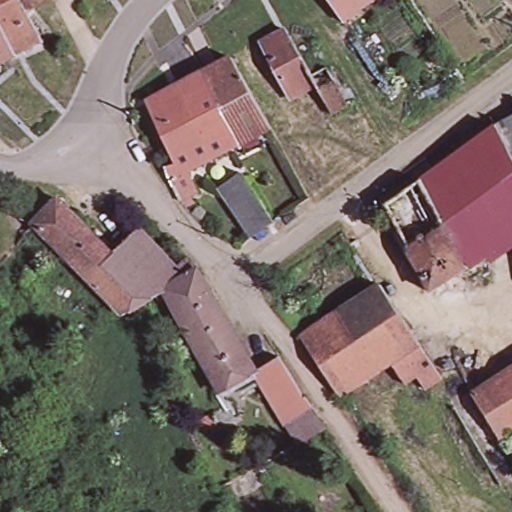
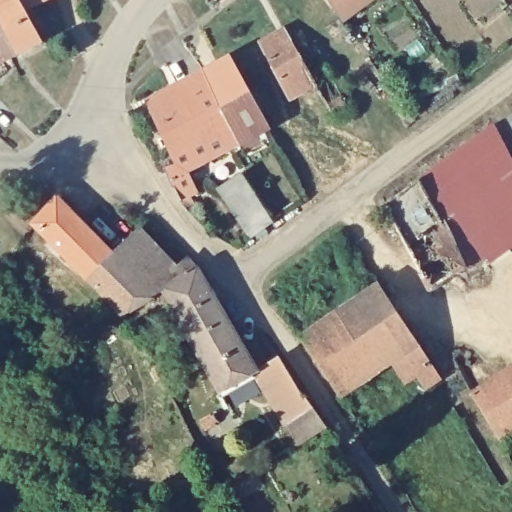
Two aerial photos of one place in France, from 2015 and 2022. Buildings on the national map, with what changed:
unchanged [(32,5),(25,8),(45,39),(20,52),(0,20),(0,0),(30,0),(32,5)]
unchanged [(32,5),(30,0),(42,0),(32,5)]
unchanged [(345,22),(337,11),(329,0),(376,0),(345,22)]
unchanged [(20,52),(0,62),(0,20),(20,52)]
unchanged [(348,107),(332,115),(317,87),(292,100),(262,45),(287,32),(312,79),(328,70),(348,107)]
unchanged [(235,54),(275,125),(242,141),(207,69),(235,54)]
unchanged [(148,100),(207,69),(242,141),(190,166),(199,188),(190,193),(193,199),(186,203),(178,190),(165,166),(175,161),(148,100)]
unchanged [(512,114),(512,164),(492,127),(512,114)]
unchanged [(466,269),(418,181),(492,127),(512,164),(512,243),(508,238),(466,269)]
unchanged [(245,175),(275,224),(252,238),(222,190),(245,175)]
unchanged [(429,292),(387,221),(380,209),(418,181),(466,269),(429,292)]
unchanged [(283,423),(250,371),(219,390),(165,296),(160,298),(158,299),(153,292),(121,312),(30,220),(54,196),(111,252),(138,227),(150,239),(171,267),(186,259),(196,268),(253,368),(275,355),(301,394),(303,393),(311,406),(323,424),(295,443),(283,423)]
unchanged [(381,280),(445,375),(430,387),(420,373),(409,381),(395,359),(342,394),(302,334),(380,281),(381,280)]
unchanged [(475,394),(512,371),(512,438),(503,443),(475,394)]
unchanged [(213,419),(222,429),(213,438),(203,427),(213,419)]

